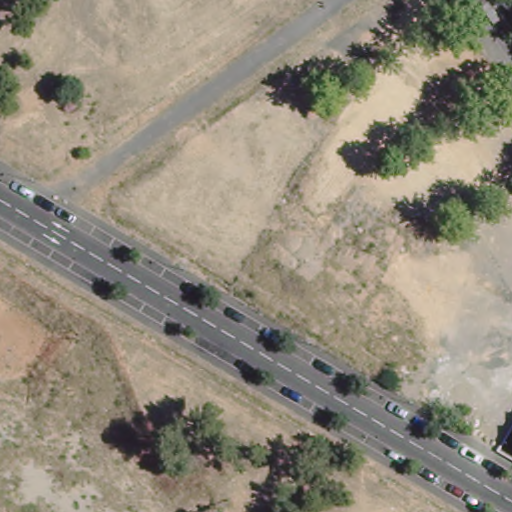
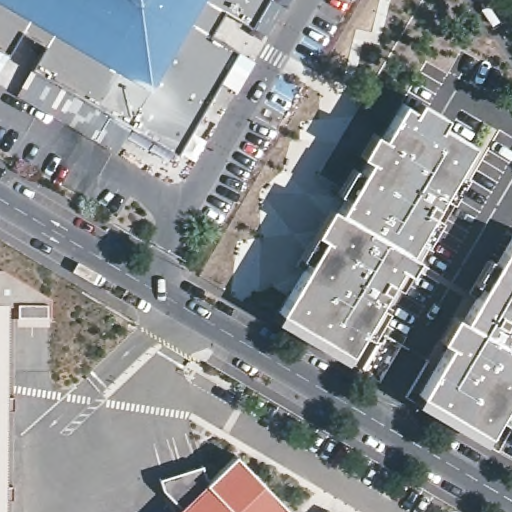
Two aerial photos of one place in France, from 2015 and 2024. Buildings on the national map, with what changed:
new [(32,69),(45,45),(23,32),(10,56),(0,50),(0,0),(266,0),(251,27),(223,11),(208,35),(236,51),(176,154),(32,69)]
new [(340,207),(342,204),(340,202),(369,159),(361,154),(375,133),(380,137),(403,104),(413,111),(420,101),(446,118),(442,125),(470,144),(466,150),(469,153),(457,171),(465,177),(449,200),(441,195),(423,222),(427,224),(417,240),(412,237),(404,250),(412,255),(344,358),(316,340),(272,317),(308,263),(299,257),(331,208),(340,207)]
new [(510,237),(512,238),(512,398),(492,431),(488,428),(485,434),(419,395),(448,344),(441,339),(454,317),(460,320),(510,237)]
new [(51,300),(51,316),(46,316),(16,316),(16,307),(8,307),(5,512),(0,512),(0,270),(1,270),(51,300)]
new [(210,479),(235,455),(290,512),(175,512),(180,508),(210,479)]
new [(203,466),(206,476),(210,479),(180,508),(163,491),(160,479),(203,466)]
new [(330,512),(328,512),(329,511),(330,512)]

